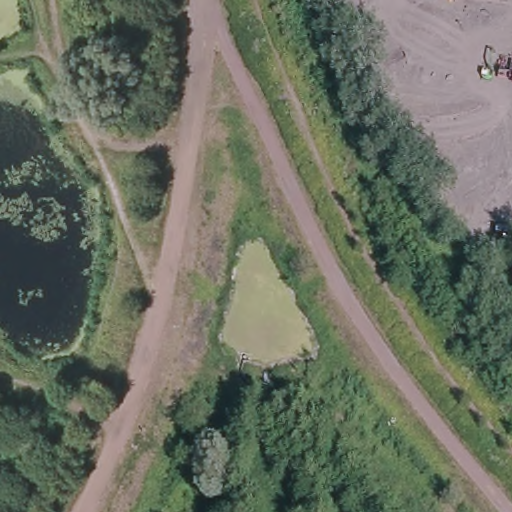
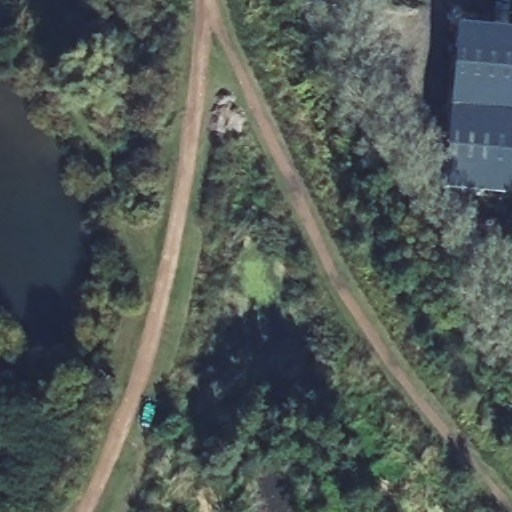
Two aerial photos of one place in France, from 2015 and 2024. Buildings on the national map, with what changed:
new [(455,30),(512,36),(512,200),(442,195),(455,30)]

